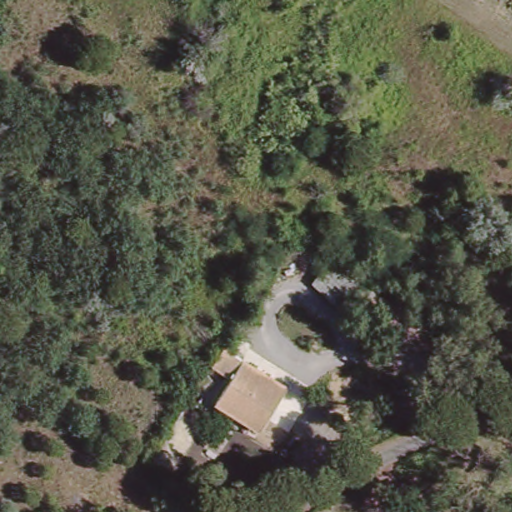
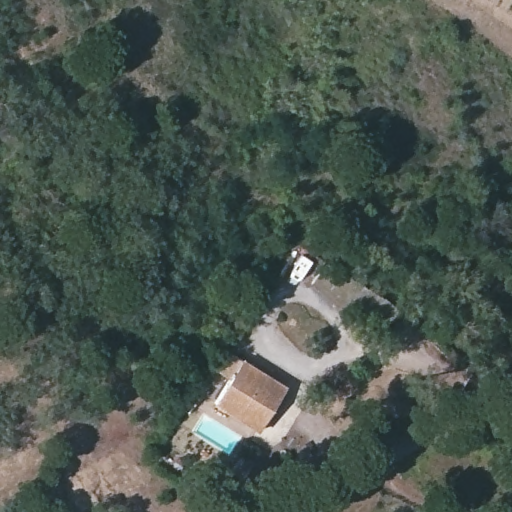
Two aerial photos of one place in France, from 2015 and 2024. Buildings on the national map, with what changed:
unchanged [(242,356),(286,383),(260,424),(217,397),(242,356)]

